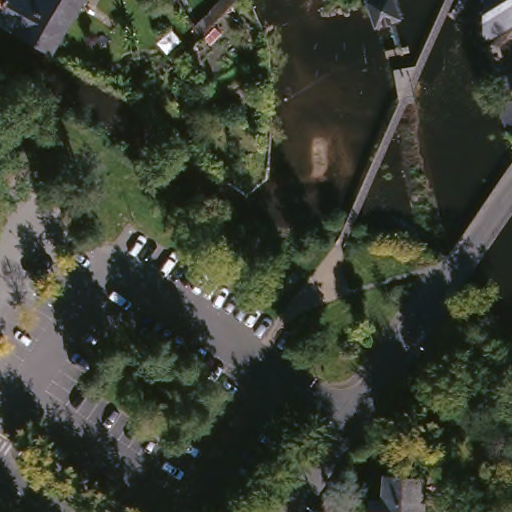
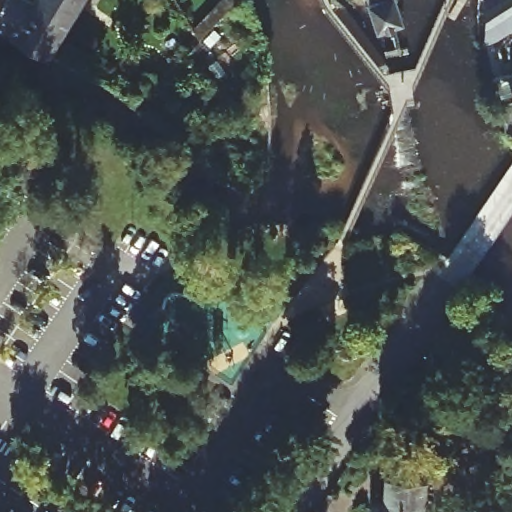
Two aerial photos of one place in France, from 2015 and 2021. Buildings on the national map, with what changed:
unchanged [(3,0),(0,6),(0,0),(3,0)]
unchanged [(47,56),(0,29),(0,6),(3,0),(31,0),(33,1),(34,0),(80,0),(48,55),(47,56)]
unchanged [(220,0),(240,0),(199,41),(192,28),(220,0)]
unchanged [(374,27),(373,28),(364,0),(390,0),(397,20),(374,27)]
unchanged [(480,40),(472,40),(472,15),(474,0),(512,0),(512,24),(490,38),(480,40)]
unchanged [(507,73),(512,70),(512,100),(502,75),(507,73)]
unchanged [(492,108),(499,106),(512,102),(512,129),(500,133),(492,108)]
unchanged [(418,387),(409,378),(436,349),(445,358),(418,387)]
unchanged [(424,479),(422,512),(367,512),(367,505),(379,505),(379,478),(424,479)]

